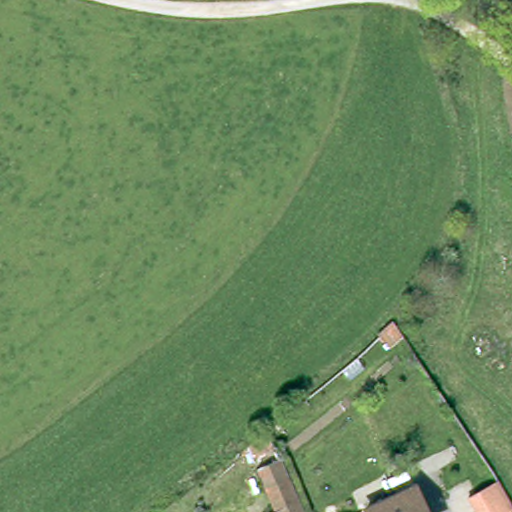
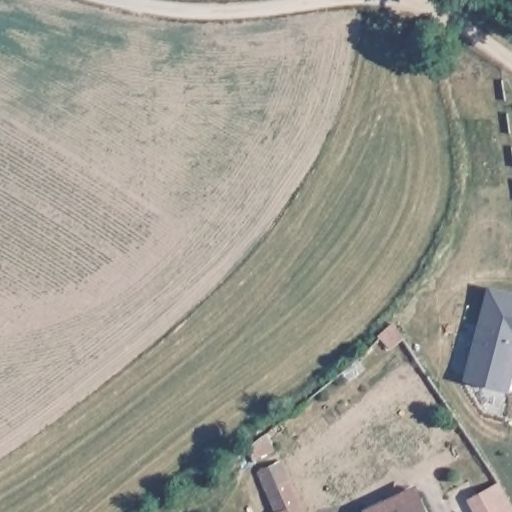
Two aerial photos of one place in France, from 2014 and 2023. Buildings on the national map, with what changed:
new [(465,381),(489,286),(512,292),(512,389),(511,391),(465,381)]
unchanged [(279,463),(300,512),(270,512),(256,473),(279,463)]
unchanged [(490,482),(507,506),(499,512),(472,512),(465,502),(490,482)]
unchanged [(420,512),(361,512),(360,509),(394,492),(400,502),(414,497),(420,512)]

